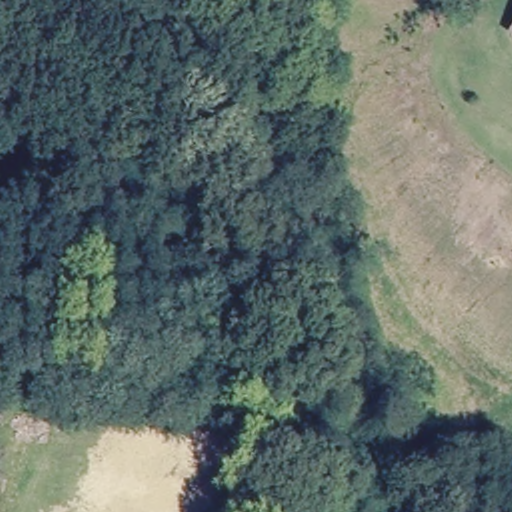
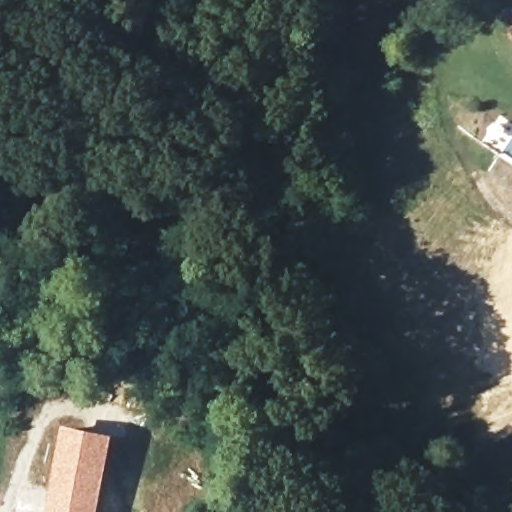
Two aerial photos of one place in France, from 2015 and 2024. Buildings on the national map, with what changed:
new [(112,435),(97,512),(43,512),(60,425),(112,435)]

